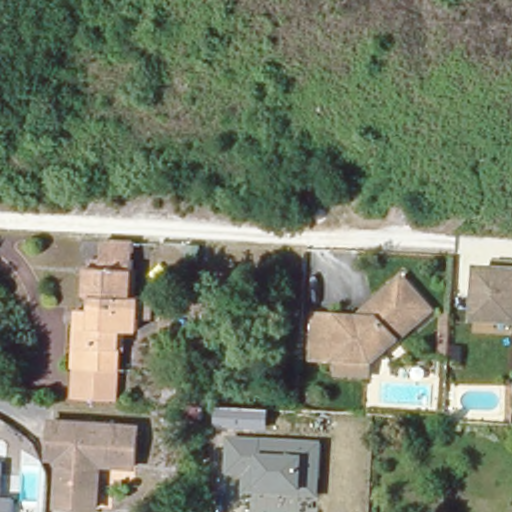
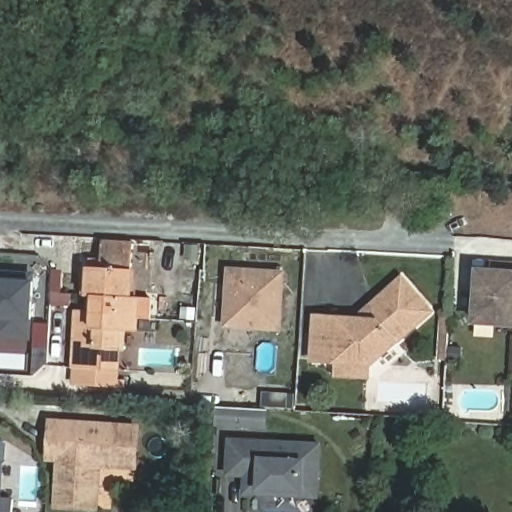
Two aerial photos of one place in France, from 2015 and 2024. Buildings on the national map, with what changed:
unchanged [(144,323),(141,323),(141,325),(140,338),(125,337),(122,376),(74,372),(77,312),(85,312),(87,312),(88,298),(89,270),(103,271),(104,245),(133,246),(137,247),(135,300),(135,301),(146,302),(159,302),(157,325),(144,323)]
new [(228,270),(281,272),(279,327),(226,325),(228,270)]
unchanged [(506,270),(512,270),(512,328),(498,327),(498,317),(478,316),(480,275),(506,277),(506,270)]
new [(32,273),(34,277),(31,338),(0,336),(0,271),(32,273)]
unchanged [(369,325),(375,319),(375,310),(404,283),(432,313),(376,367),(318,363),(320,322),(369,325)]
unchanged [(74,372),(122,376),(120,402),(71,398),(74,372)]
unchanged [(135,472),(100,471),(97,512),(83,512),(55,510),(58,462),(49,462),(51,425),(137,430),(135,472)]
unchanged [(318,497),(301,496),(303,496),(256,492),(253,493),(244,492),(244,473),(228,473),(229,436),(322,442),(318,497)]
unchanged [(4,462),(2,497),(15,497),(14,512),(0,512),(0,462),(4,462)]

